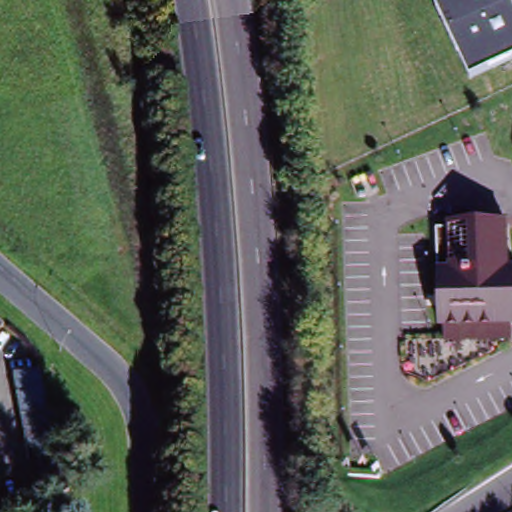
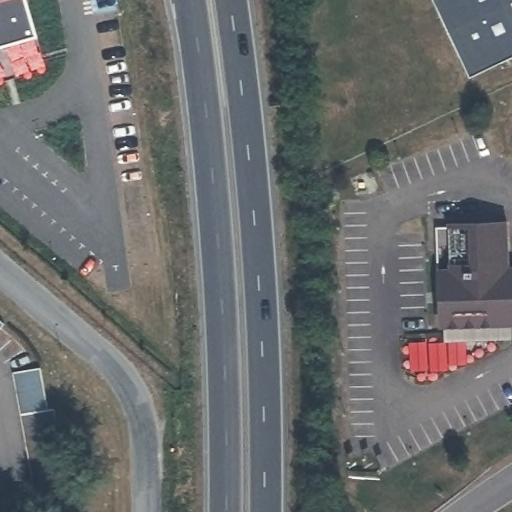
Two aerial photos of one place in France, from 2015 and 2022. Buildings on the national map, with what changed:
new [(40,37),(0,48),(0,0),(28,0),(40,37)]
unchanged [(467,82),(428,0),(512,0),(512,60),(467,82)]
unchanged [(510,265),(512,264),(512,338),(469,340),(445,340),(444,329),(437,330),(437,267),(448,267),(447,222),(507,222),(510,265)]
unchanged [(0,326),(3,328),(0,332),(0,326)]
unchanged [(12,377),(40,373),(47,415),(53,413),(68,496),(35,502),(12,377)]

